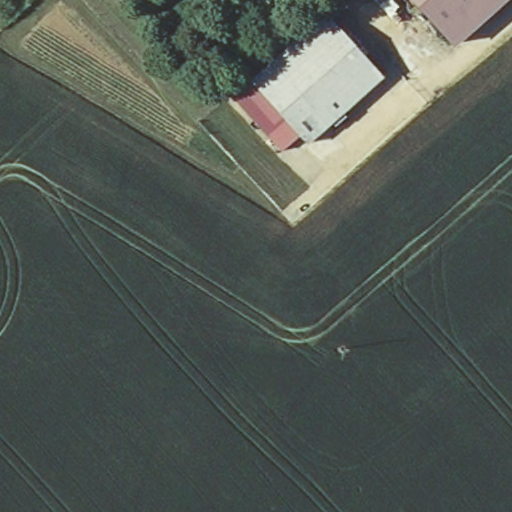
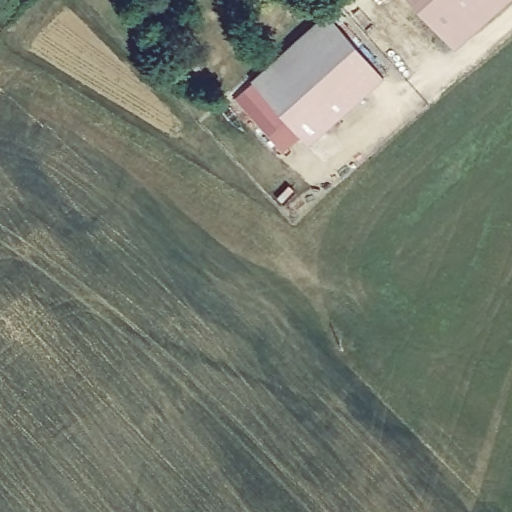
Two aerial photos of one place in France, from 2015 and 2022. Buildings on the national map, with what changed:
unchanged [(409,0),(498,0),(448,44),(409,0)]
unchanged [(323,126),(304,144),(246,79),(297,34),(322,10),(381,76),(357,96),(323,126)]

